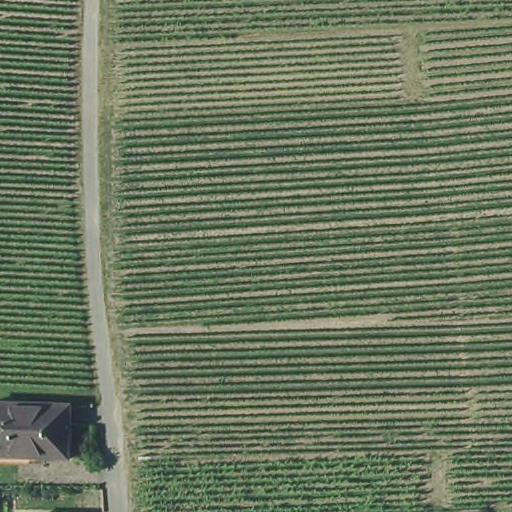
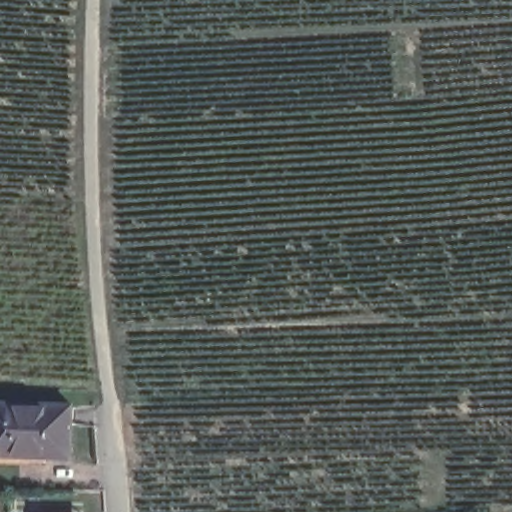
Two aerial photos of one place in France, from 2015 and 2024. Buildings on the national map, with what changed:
unchanged [(75,459),(0,457),(0,405),(76,407),(75,459)]

